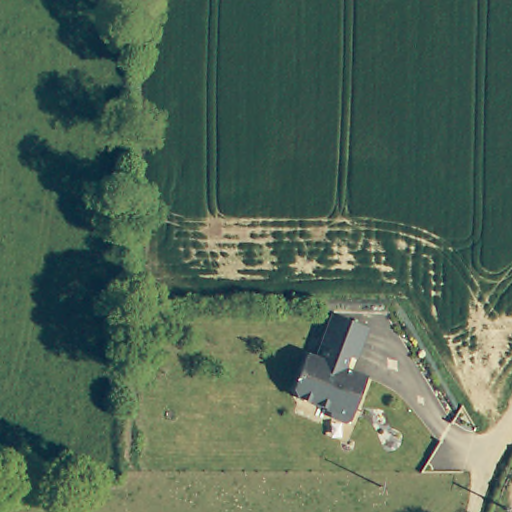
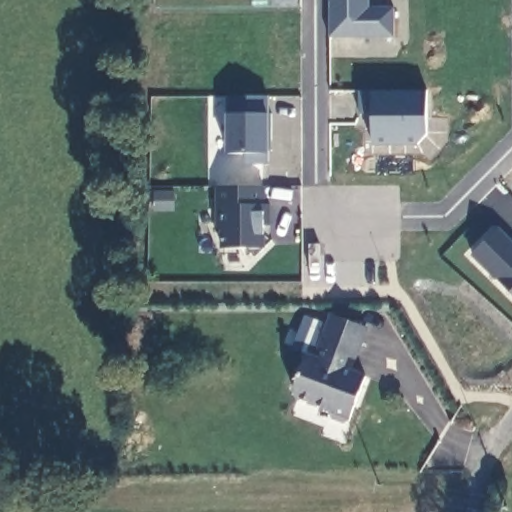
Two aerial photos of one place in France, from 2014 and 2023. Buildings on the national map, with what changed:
new [(368,0),(368,11),(393,11),(393,40),(328,41),(328,0),(368,0)]
new [(422,93),(423,137),(413,146),(368,147),(368,115),(355,116),(355,94),(422,93)]
new [(267,96),(267,114),(271,114),(271,140),(267,140),(267,165),(245,165),(245,154),(227,154),(227,96),(267,96)]
new [(272,204),(271,224),(264,224),(265,234),(271,240),(255,255),(250,247),(222,248),(222,229),(215,228),(216,186),(265,186),(272,204)]
new [(499,227),(512,238),(512,294),(470,255),(499,227)]
unchanged [(335,409),(290,396),(303,355),(309,357),(321,314),(363,324),(355,352),(345,349),(340,369),(366,377),(352,426),(331,419),(335,409)]

